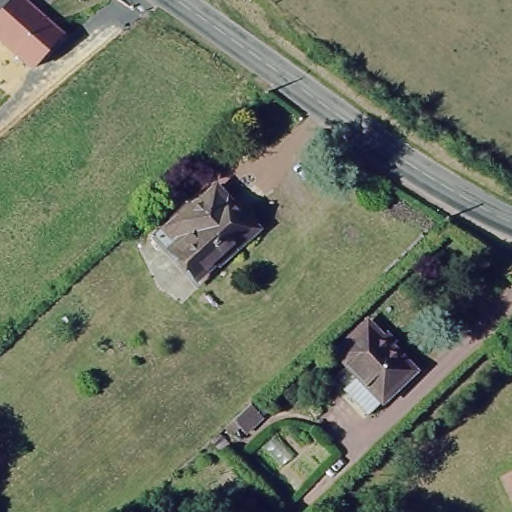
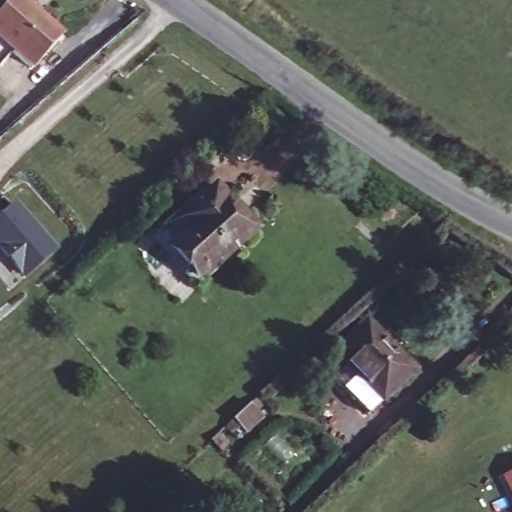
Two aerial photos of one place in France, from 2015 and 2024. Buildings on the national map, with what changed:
unchanged [(26,0),(63,35),(33,70),(0,42),(0,11),(9,0),(26,0)]
unchanged [(218,189),(247,218),(217,245),(226,255),(200,278),(162,240),(218,189)]
new [(17,201),(58,249),(23,279),(0,252),(0,216),(17,201)]
unchanged [(339,390),(351,378),(325,352),(364,315),(419,371),(366,420),(339,390)]
unchanged [(259,399),(269,410),(236,441),(225,429),(259,399)]
unchanged [(512,474),(512,507),(500,480),(512,474)]

